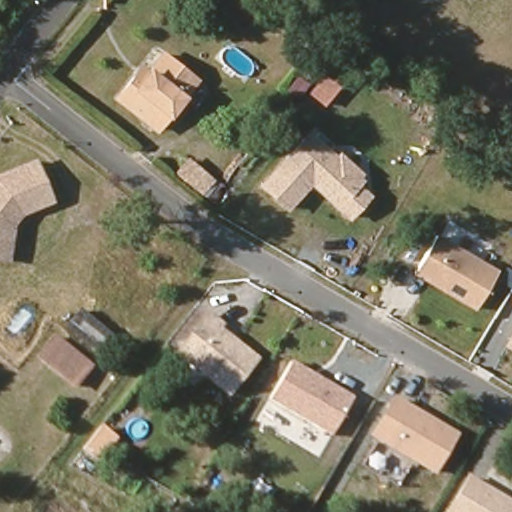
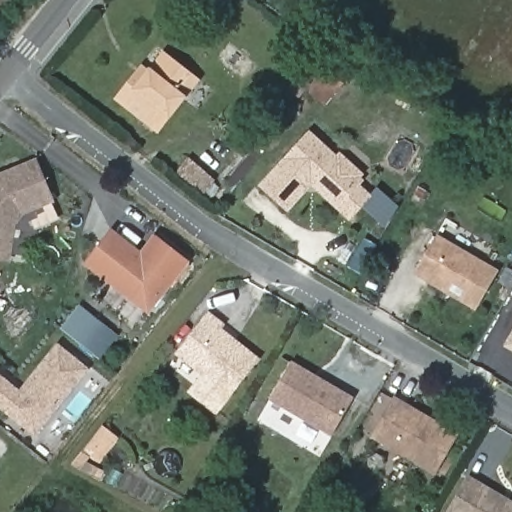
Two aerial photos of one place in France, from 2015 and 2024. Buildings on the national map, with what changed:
unchanged [(121,97),(135,80),(142,71),(151,77),(168,56),(169,55),(199,81),(196,84),(161,127),(121,97)]
unchanged [(337,156),(341,152),(364,172),(361,176),(366,180),(361,184),(373,196),(349,221),(312,187),(287,214),(256,187),(309,132),(337,156)]
unchanged [(0,170),(37,155),(52,194),(20,207),(11,218),(8,239),(5,255),(0,254),(0,170)]
unchanged [(190,157),(224,187),(213,202),(180,174),(190,157)]
new [(148,316),(84,264),(111,229),(140,251),(154,235),(191,262),(148,316)]
unchanged [(498,269),(475,311),(413,276),(436,235),(498,269)]
unchanged [(226,323),(220,329),(261,361),(231,397),(174,352),(207,311),(226,323)]
unchanged [(504,347),(512,333),(512,352),(504,347)]
demolished [(94,367),(77,387),(42,358),(58,339),(94,367)]
new [(62,347),(94,373),(39,437),(0,407),(0,378),(24,395),(62,347)]
unchanged [(355,397),(332,437),(268,400),(292,361),(355,397)]
unchanged [(461,435),(436,476),(372,437),(395,397),(461,435)]
unchanged [(512,500),(512,512),(450,512),(470,476),(512,500)]

